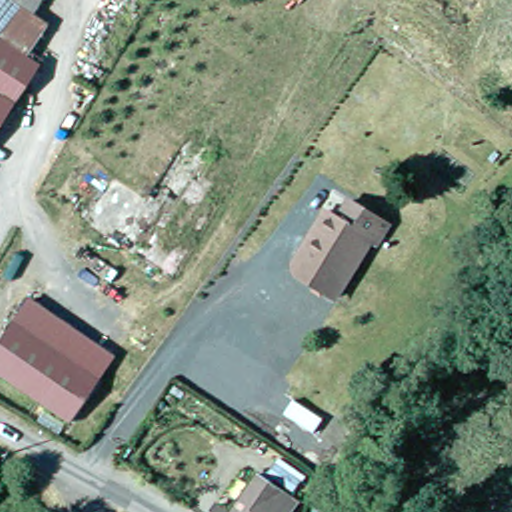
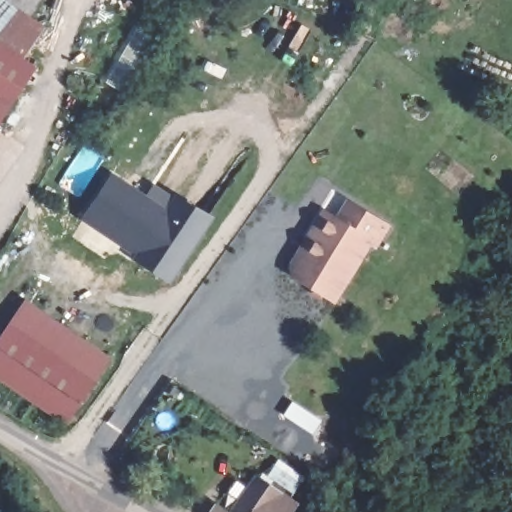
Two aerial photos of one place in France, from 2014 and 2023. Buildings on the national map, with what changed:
unchanged [(49,22),(23,57),(0,41),(0,0),(35,0),(27,13),(49,22)]
unchanged [(39,68),(0,126),(0,41),(23,57),(39,68)]
new [(175,195),(214,218),(172,285),(135,261),(138,257),(84,220),(114,175),(147,195),(155,184),(175,195)]
unchanged [(379,246),(373,242),(337,301),(300,278),(296,266),(302,255),(312,261),(336,221),(339,222),(350,205),(390,229),(379,246)]
unchanged [(28,301),(110,357),(93,383),(19,332),(12,327),(28,301)]
unchanged [(65,422),(0,377),(0,344),(12,327),(93,383),(65,422)]
new [(294,402),(322,421),(314,435),(285,416),(294,402)]
unchanged [(226,502),(238,510),(262,475),(301,502),(302,503),(296,512),(219,512),(226,502)]

